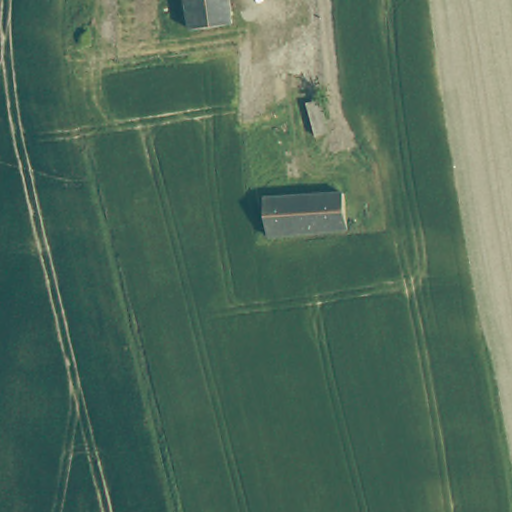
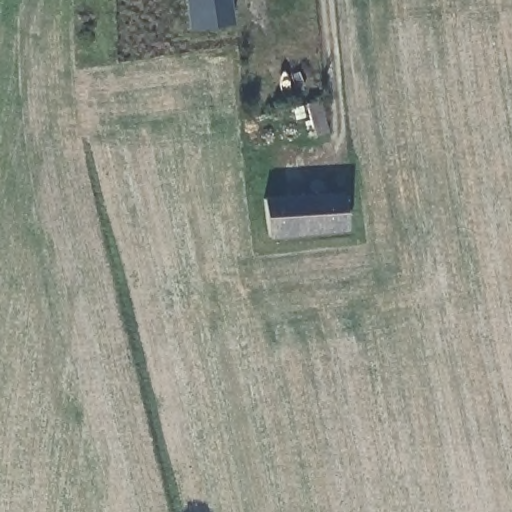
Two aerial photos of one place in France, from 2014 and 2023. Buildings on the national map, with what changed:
unchanged [(234,23),(190,26),(188,0),(231,0),(234,23)]
unchanged [(330,130),(313,131),(309,99),(323,97),(330,130)]
unchanged [(270,231),(267,196),(346,190),(349,226),(270,231)]

